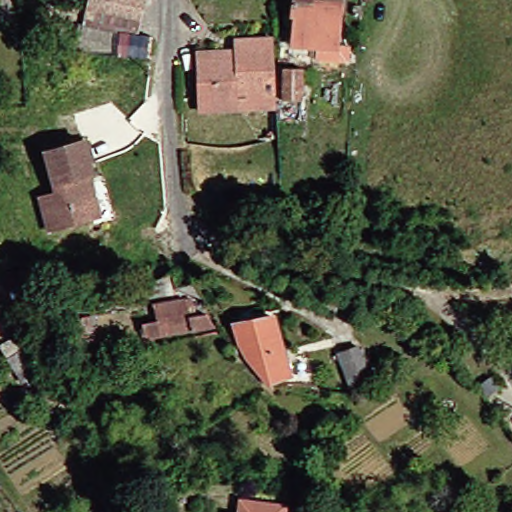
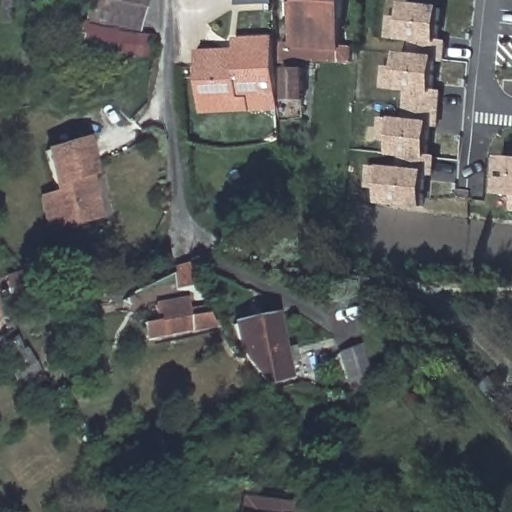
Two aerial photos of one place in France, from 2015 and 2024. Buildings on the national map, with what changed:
unchanged [(127,38),(76,26),(83,0),(136,0),(127,38)]
new [(272,5),(236,7),(236,0),(271,0),(272,5)]
unchanged [(339,19),(337,49),(288,45),(290,15),(288,15),(289,0),(341,0),(339,19)]
new [(440,39),(450,41),(447,62),(438,60),(434,89),(444,90),(441,127),(432,126),(429,154),(437,155),(434,177),(427,176),(422,208),(377,204),(377,189),(366,187),(368,165),(383,165),(401,167),(401,159),(388,157),(388,141),(377,140),(381,117),(393,117),(407,120),(410,93),(395,91),(383,89),(386,66),(397,67),(399,52),(414,54),(414,42),(401,41),(389,39),(391,16),(403,17),(405,3),(443,7),(440,39)]
unchanged [(194,111),(194,100),(193,62),(193,50),(229,50),(230,50),(230,37),(269,37),(271,79),(260,79),(260,90),(272,90),(272,109),(248,109),(196,111),(194,111)]
new [(352,65),(285,60),(288,45),(337,49),(337,44),(356,47),(352,65)]
unchanged [(299,104),(279,104),(278,67),(300,67),(299,104)]
unchanged [(31,200),(39,198),(47,196),(35,153),(77,144),(85,177),(96,219),(83,222),(48,230),(39,232),(31,200)]
new [(495,195),(499,156),(512,157),(512,196),(495,195)]
new [(510,211),(512,204),(512,211),(510,211)]
unchanged [(0,287),(0,277),(16,275),(29,295),(4,300),(0,287)]
unchanged [(174,277),(184,289),(167,290),(164,278),(174,277)]
unchanged [(183,320),(199,317),(208,330),(140,341),(136,326),(150,325),(146,307),(177,302),(183,320)]
unchanged [(260,380),(231,344),(224,321),(266,316),(283,371),(260,380)]
unchanged [(364,387),(343,396),(329,356),(350,349),(364,387)]
unchanged [(18,352),(31,375),(16,385),(15,385),(1,362),(18,352)]
unchanged [(248,512),(233,512),(233,510),(248,512)]

